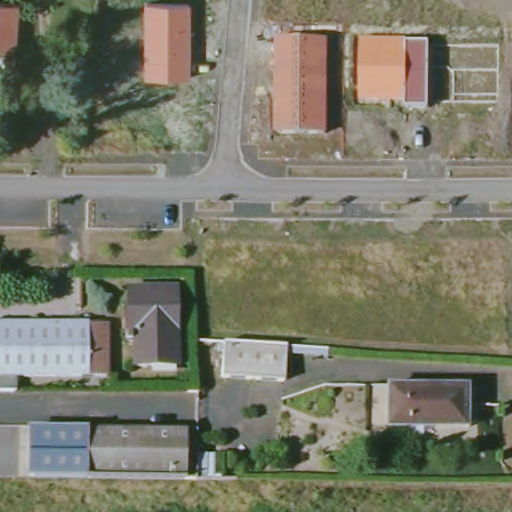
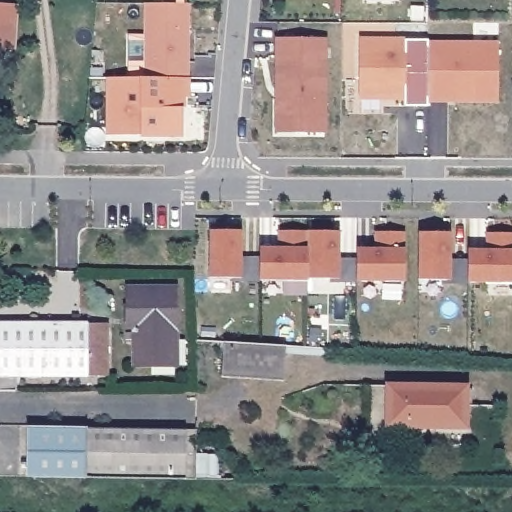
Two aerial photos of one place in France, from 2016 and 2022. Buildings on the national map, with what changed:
unchanged [(143,78),(144,3),(190,5),(190,77),(143,78)]
unchanged [(405,106),(405,100),(357,102),(360,37),(405,38),(405,42),(427,41),(428,105),(405,106)]
unchanged [(276,38),(327,40),(326,133),(275,134),(276,38)]
new [(498,41),(498,101),(428,103),(427,41),(498,41)]
new [(190,99),(184,99),(183,107),(184,137),(140,135),(106,135),(106,79),(127,78),(128,61),(143,61),(143,78),(190,77),(190,99)]
new [(208,277),(211,230),(241,230),(241,257),(262,257),(261,247),(278,248),(279,231),(309,232),(339,231),(340,258),(358,258),(359,249),(375,249),(375,232),(405,232),(405,249),(405,281),(208,277)]
new [(418,232),(451,235),(451,260),(469,260),(467,250),(485,250),(487,232),(512,234),(512,283),(418,280),(418,232)]
unchanged [(135,340),(126,340),(126,328),(130,327),(129,289),(176,289),(177,366),(136,367),(135,340)]
unchanged [(0,391),(0,324),(91,324),(108,324),(109,375),(91,376),(17,377),(18,391),(0,391)]
unchanged [(287,346),(285,381),(222,377),(225,342),(287,346)]
unchanged [(390,386),(466,387),(465,426),(388,426),(390,386)]
unchanged [(87,478),(75,477),(35,477),(36,427),(48,427),(67,427),(187,430),(186,479),(87,478)]
unchanged [(209,475),(209,455),(220,455),(221,476),(209,475)]

